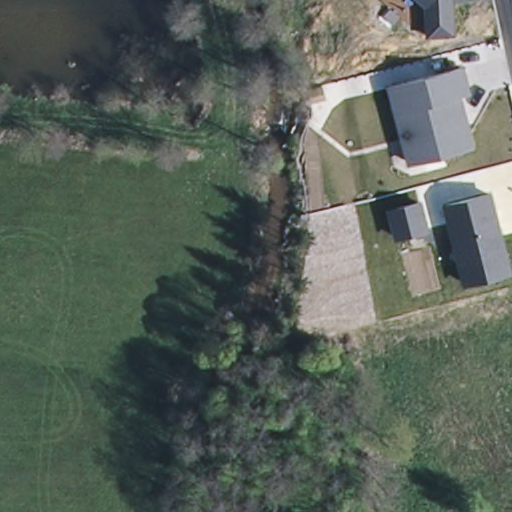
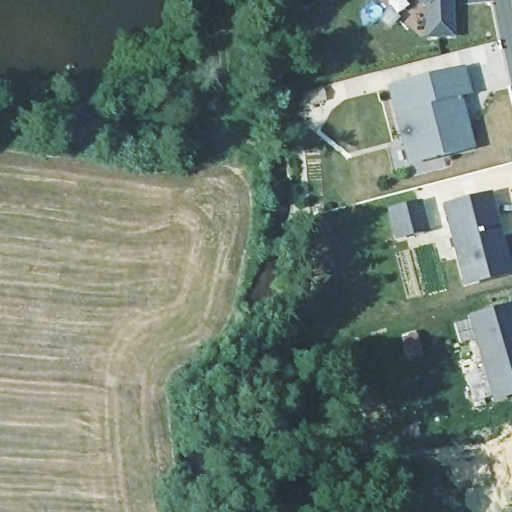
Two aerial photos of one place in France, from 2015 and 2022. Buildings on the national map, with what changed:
unchanged [(426,40),(422,2),(420,0),(454,0),(457,39),(426,40)]
unchanged [(462,67),(470,100),(461,102),(474,152),(407,172),(385,89),(462,67)]
unchanged [(492,188),(512,263),(512,271),(465,284),(442,201),(492,188)]
unchanged [(423,197),(431,229),(395,239),(387,206),(423,197)]
new [(492,402),(474,340),(459,343),(454,323),(469,320),(467,316),(512,302),(512,396),(492,402)]

